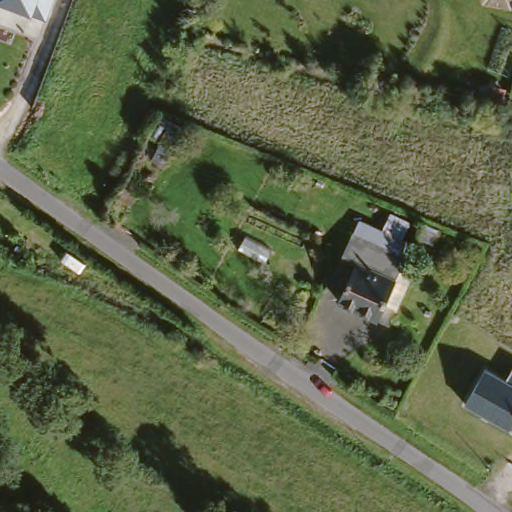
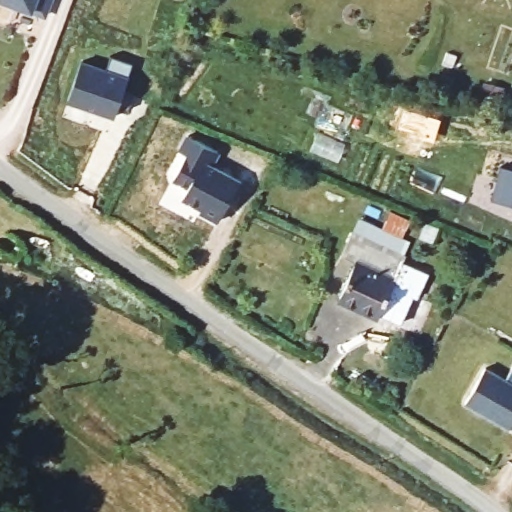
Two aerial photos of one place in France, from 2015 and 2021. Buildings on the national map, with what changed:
unchanged [(32,14),(0,2),(0,0),(52,0),(44,19),(32,14)]
new [(83,60),(108,68),(111,57),(133,65),(129,77),(124,90),(134,95),(128,110),(118,105),(114,119),(69,102),(83,60)]
demolished [(164,164),(144,151),(160,115),(184,125),(164,164)]
new [(200,211),(203,208),(183,197),(190,185),(174,177),(188,154),(180,150),(187,140),(189,136),(218,153),(210,166),(239,182),(219,220),(200,211)]
new [(496,201),(491,200),(501,167),(506,169),(512,171),(512,207),(496,201)]
unchanged [(409,241),(396,276),(380,320),(338,300),(357,261),(342,254),(360,217),(409,241)]
unchanged [(467,403),(488,368),(507,380),(512,370),(512,428),(467,403)]

